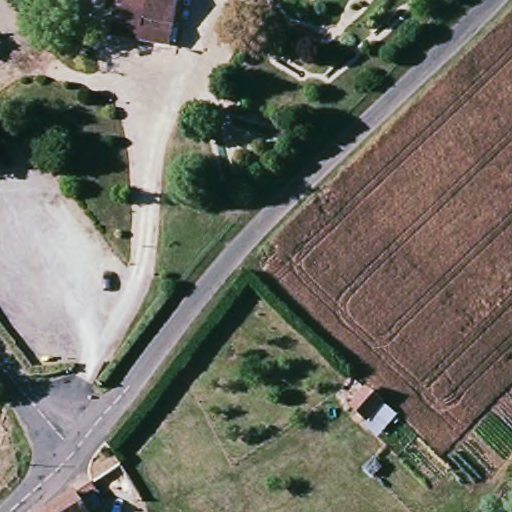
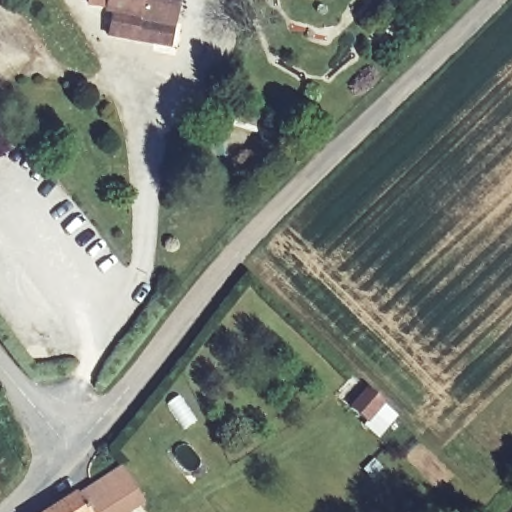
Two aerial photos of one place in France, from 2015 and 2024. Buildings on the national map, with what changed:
unchanged [(111,5),(112,0),(187,0),(181,22),(143,16),(145,11),(118,7),(111,5)]
unchanged [(177,44),(113,32),(118,7),(145,11),(143,16),(181,22),(177,44)]
unchanged [(326,195),(314,208),(306,201),(319,187),(326,195)]
unchanged [(375,423),(353,405),(373,383),(392,401),(375,423)]
demolished [(145,501),(125,512),(105,512),(85,482),(85,481),(117,460),(145,501)]
unchanged [(86,512),(41,512),(71,491),(86,512)]

